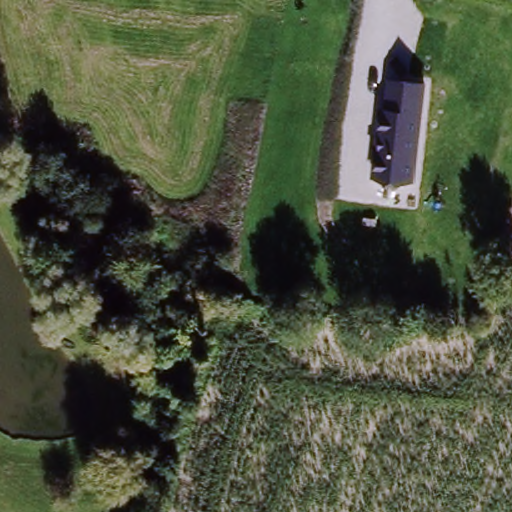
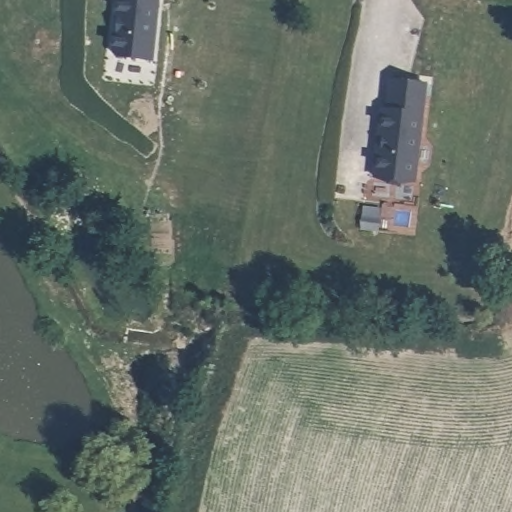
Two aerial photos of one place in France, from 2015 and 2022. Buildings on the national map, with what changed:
new [(117,30),(119,31),(120,16),(118,15),(119,0),(160,0),(154,58),(119,54),(115,49),(117,30)]
unchanged [(417,183),(373,178),(380,109),(387,110),(390,79),(427,83),(417,183)]

